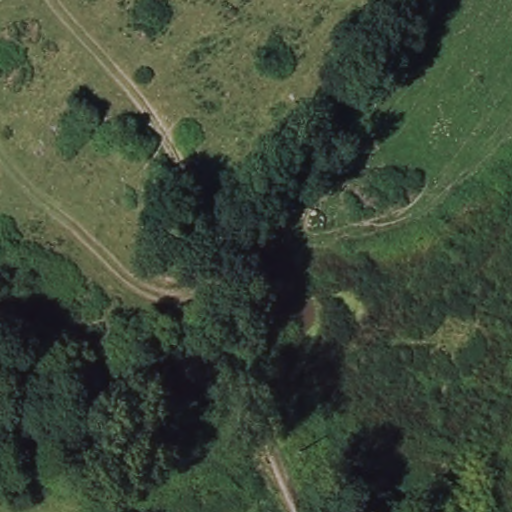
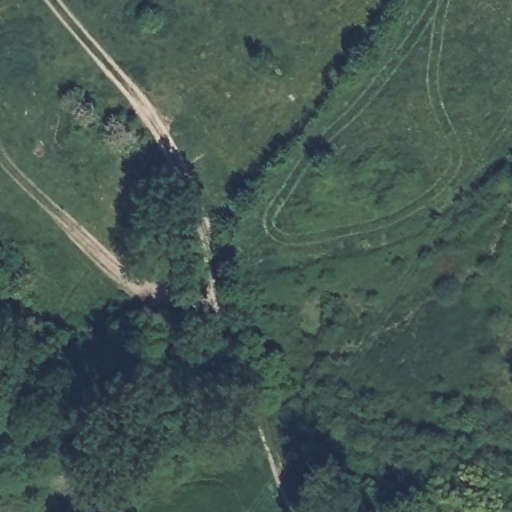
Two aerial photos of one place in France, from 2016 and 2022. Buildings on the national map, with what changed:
[]

